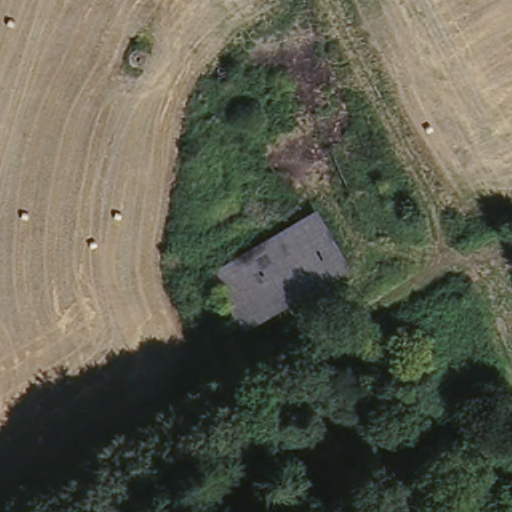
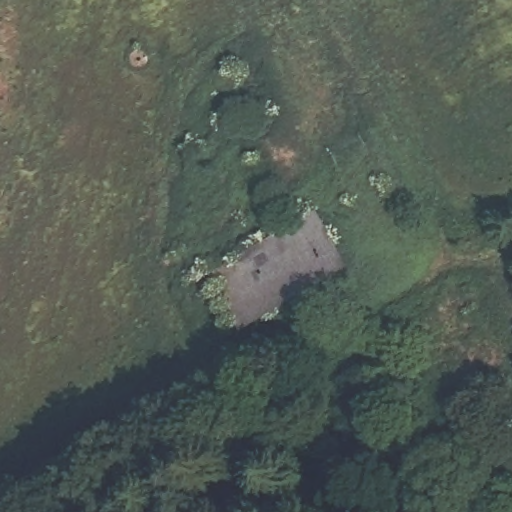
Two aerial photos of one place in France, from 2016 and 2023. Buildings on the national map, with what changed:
unchanged [(316,213),(348,267),(240,326),(212,274),(316,213)]

